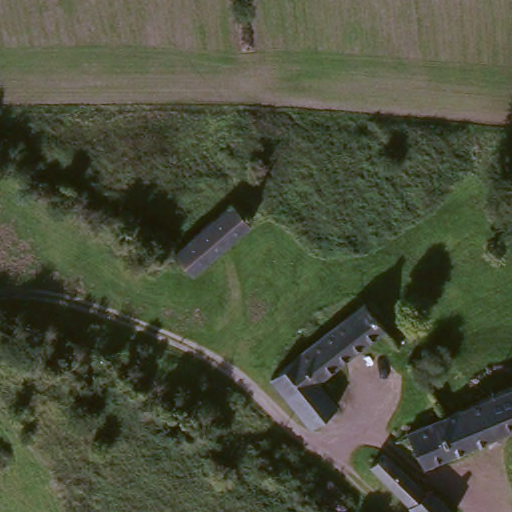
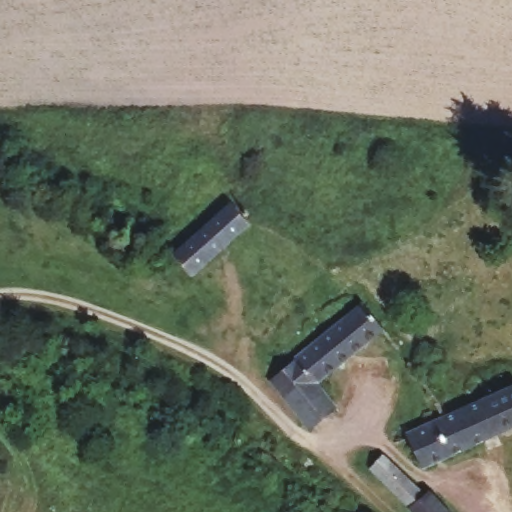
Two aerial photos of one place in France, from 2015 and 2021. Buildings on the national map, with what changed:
unchanged [(181,253),(237,203),(254,223),(199,273),(181,253)]
unchanged [(345,407),(317,430),(277,382),(370,306),(392,334),(328,387),(345,407)]
unchanged [(512,389),(512,432),(427,470),(408,434),(512,389)]
unchanged [(417,512),(373,470),(387,456),(428,496),(435,491),(456,512),(417,512)]

